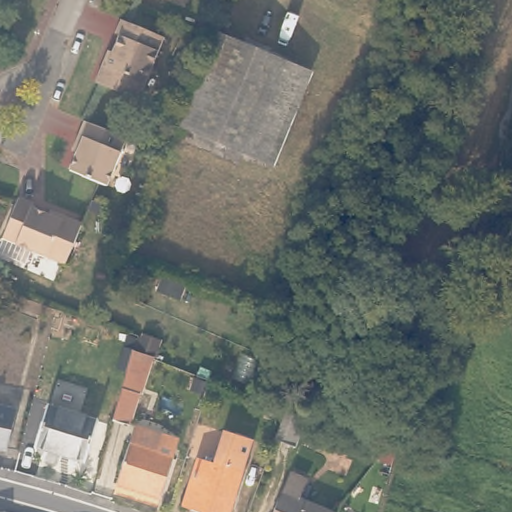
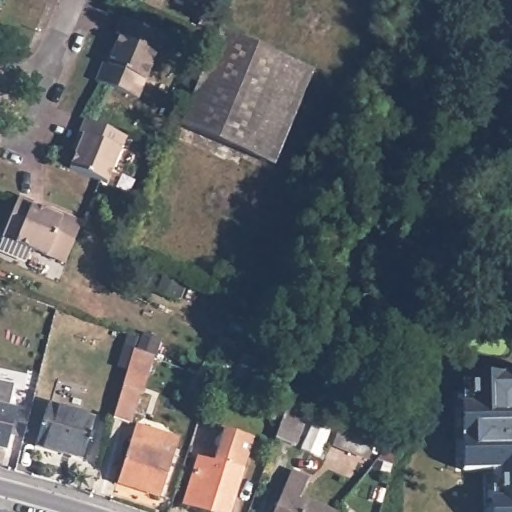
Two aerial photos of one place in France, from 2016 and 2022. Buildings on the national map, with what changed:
unchanged [(182,1),(181,0),(183,0),(182,1)]
unchanged [(109,50),(112,52),(120,35),(115,33),(121,19),(164,37),(138,100),(95,82),(104,62),(109,50)]
unchanged [(293,63),(255,156),(180,125),(219,32),(293,63)]
unchanged [(311,71),(273,164),(255,156),(293,63),(311,71)]
unchanged [(126,138),(107,184),(70,169),(77,151),(72,150),(78,137),(85,120),(126,138)]
unchanged [(0,239),(0,230),(14,197),(29,203),(27,207),(44,214),(45,209),(57,215),(77,223),(60,264),(0,239)]
unchanged [(185,285),(180,298),(158,289),(163,277),(185,285)]
unchanged [(160,346),(155,361),(139,355),(144,341),(160,346)]
unchanged [(135,356),(151,362),(141,398),(139,398),(130,429),(114,424),(134,356),(135,356)]
new [(492,505),(492,498),(491,470),(463,471),(463,460),(452,461),(452,412),(463,412),(463,380),(471,380),(471,374),(512,372),(512,512),(483,512),(483,505),(492,505)]
unchanged [(300,446),(280,439),(286,422),(270,416),(275,403),(290,409),(310,417),(300,446)]
unchanged [(14,409),(5,450),(0,449),(0,405),(14,409)]
unchanged [(97,420),(85,460),(35,445),(48,405),(97,420)]
unchanged [(157,456),(174,461),(160,502),(117,488),(130,447),(135,430),(142,432),(162,439),(157,456)]
unchanged [(367,460),(333,446),(340,431),(373,444),(367,460)]
unchanged [(198,460),(215,465),(225,432),(251,440),(228,512),(208,512),(205,511),(184,505),(185,499),(198,460)]
unchanged [(395,454),(391,467),(376,460),(385,450),(395,454)]
unchanged [(310,490),(302,509),(310,512),(285,512),(297,484),(310,490)]

